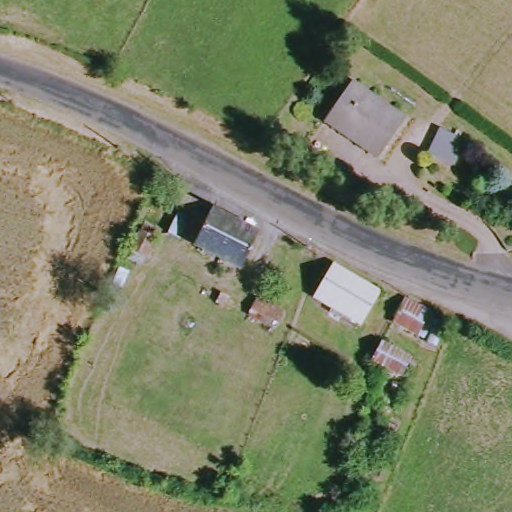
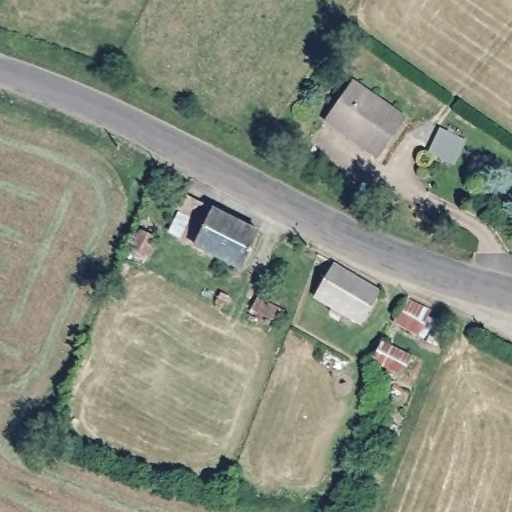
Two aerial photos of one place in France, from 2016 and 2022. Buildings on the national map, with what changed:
unchanged [(4,0),(0,15),(0,0),(4,0)]
unchanged [(330,114),(354,80),(407,118),(380,156),(350,136),(326,119),(330,114)]
unchanged [(261,222),(243,270),(198,250),(218,206),(261,222)]
unchanged [(145,255),(129,248),(137,230),(151,238),(145,255)]
unchanged [(332,313),(335,306),(320,297),(338,266),(381,291),(363,322),(347,313),(343,319),(332,313)]
unchanged [(223,307),(216,305),(220,294),(226,297),(223,307)]
unchanged [(278,324),(273,323),(270,328),(245,316),(256,299),(282,312),(278,324)]
unchanged [(416,333),(391,320),(402,299),(427,310),(416,333)]
unchanged [(436,346),(422,340),(432,316),(445,321),(436,346)]
unchanged [(400,373),(393,370),(390,375),(384,372),(386,368),(371,359),(379,343),(407,358),(400,373)]

